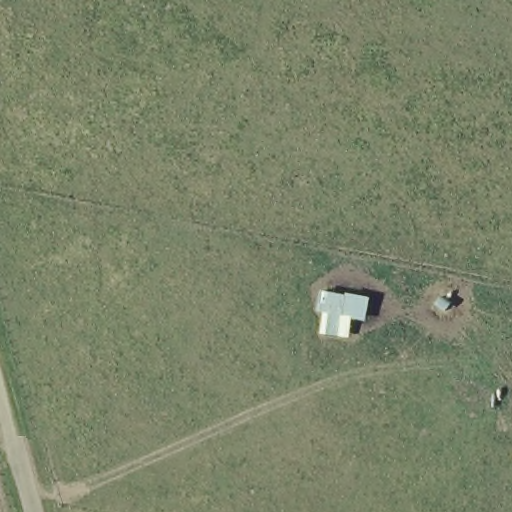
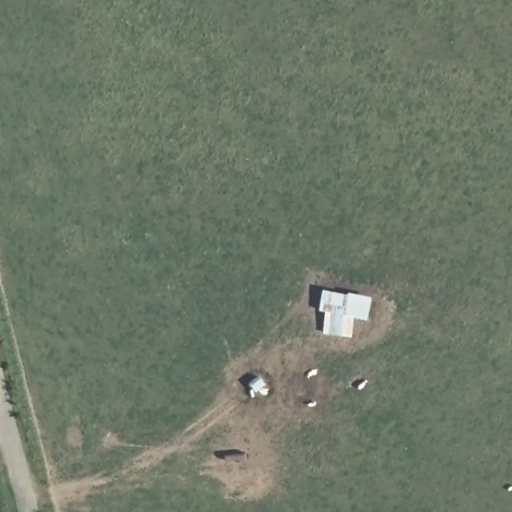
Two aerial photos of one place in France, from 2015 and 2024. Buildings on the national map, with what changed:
unchanged [(372,318),(326,311),(330,287),(377,295),(372,318)]

